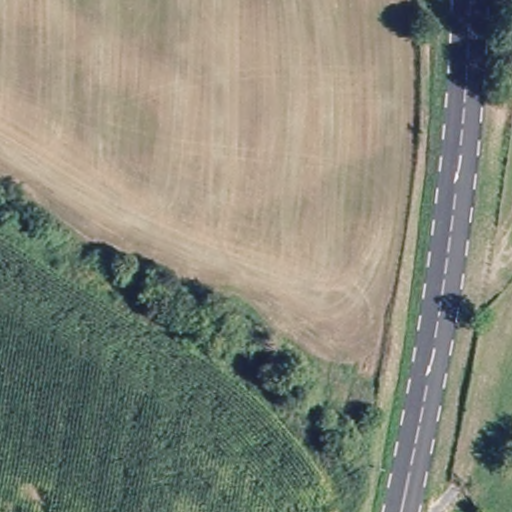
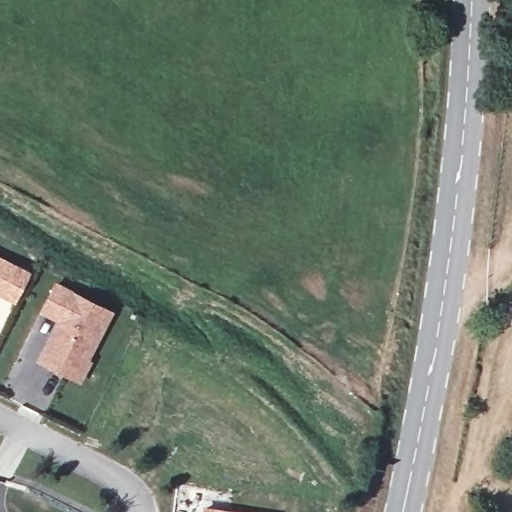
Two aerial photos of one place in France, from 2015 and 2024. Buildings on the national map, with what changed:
new [(0,297),(0,257),(30,272),(14,304),(0,297)]
new [(88,357),(91,362),(80,383),(36,362),(55,321),(37,314),(54,282),(113,312),(88,357)]
new [(248,512),(200,512),(201,506),(248,512)]

